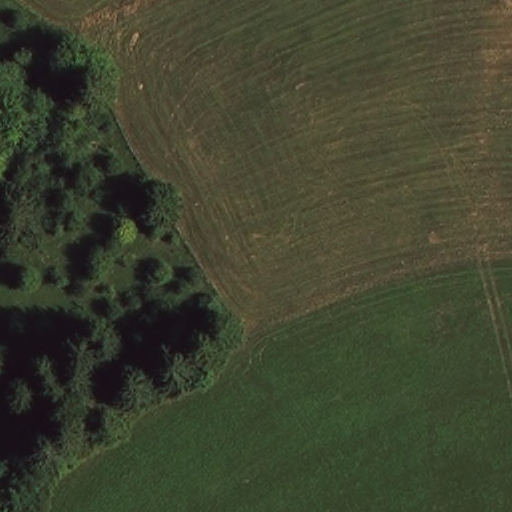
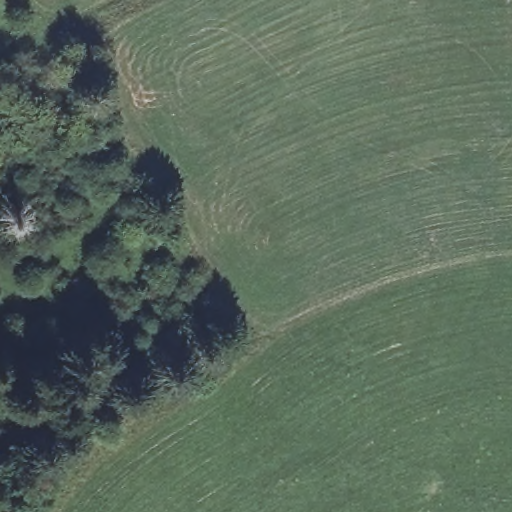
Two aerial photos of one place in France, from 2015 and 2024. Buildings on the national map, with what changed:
[]

